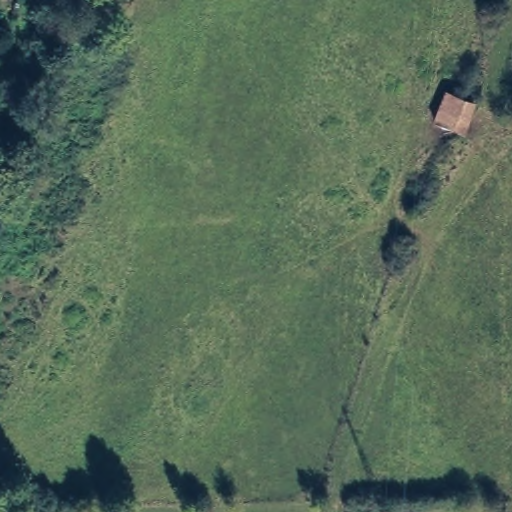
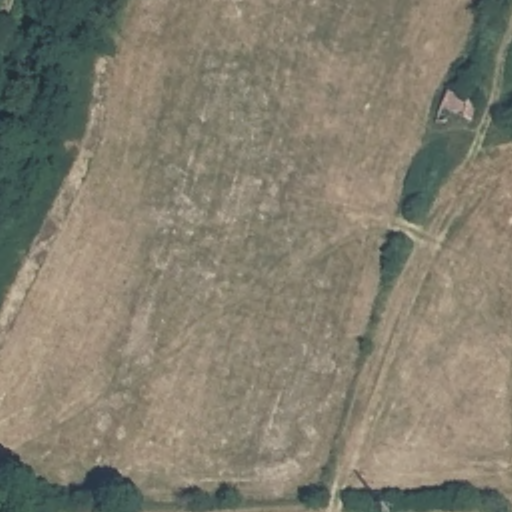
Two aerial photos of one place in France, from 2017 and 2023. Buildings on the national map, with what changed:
unchanged [(449,91),(477,104),(466,135),(436,121),(449,91)]

